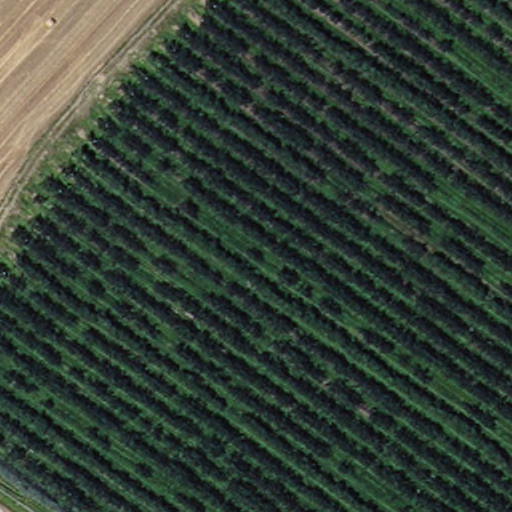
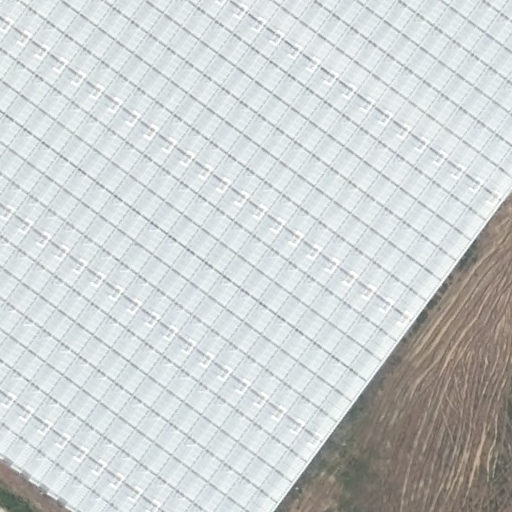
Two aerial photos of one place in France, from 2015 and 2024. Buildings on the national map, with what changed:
new [(512,186),(271,512),(84,512),(0,450),(0,0),(512,0),(512,186)]

